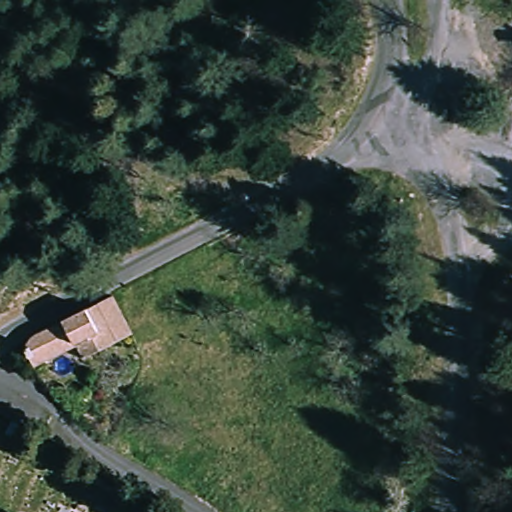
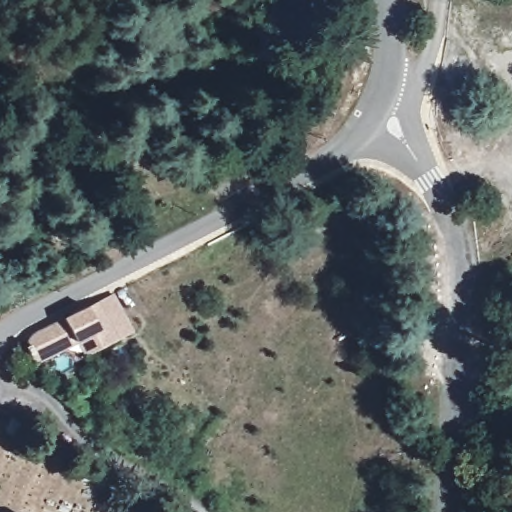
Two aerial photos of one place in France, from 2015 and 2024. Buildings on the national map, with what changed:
unchanged [(82,314),(91,332),(107,325),(97,302),(111,295),(132,333),(84,357),(78,345),(69,350),(59,325),(82,314)]
unchanged [(69,350),(32,366),(31,364),(27,358),(26,350),(28,343),(33,337),(59,325),(69,350)]

